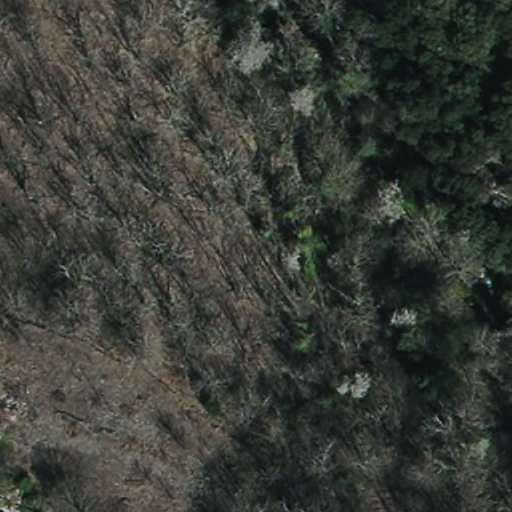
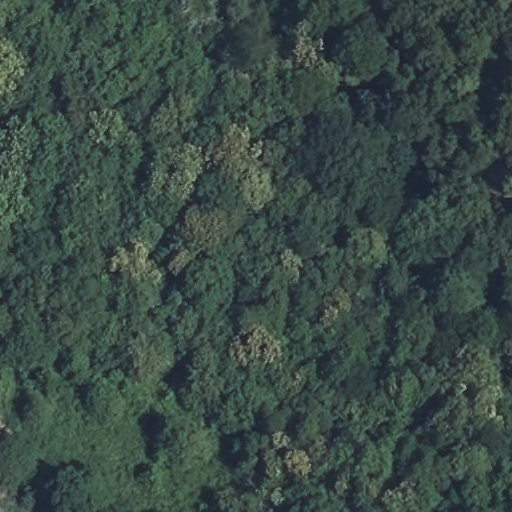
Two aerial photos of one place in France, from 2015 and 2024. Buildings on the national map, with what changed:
[]

